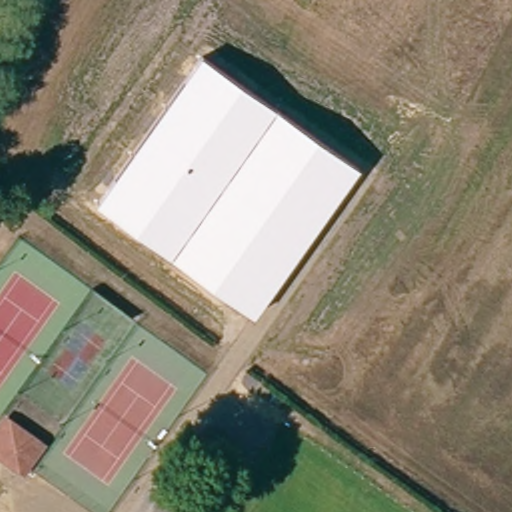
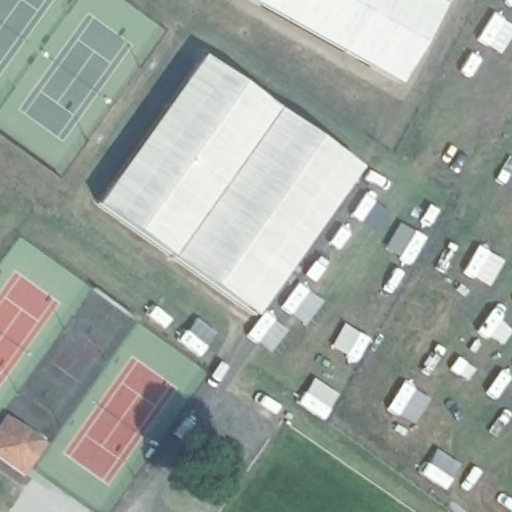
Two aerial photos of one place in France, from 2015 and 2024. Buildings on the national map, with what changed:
new [(398,83),(251,0),(445,0),(398,83)]
unchanged [(254,315),(96,205),(200,57),(357,168),(254,315)]
unchanged [(16,420),(36,435),(17,462),(0,450),(0,443),(16,420)]

